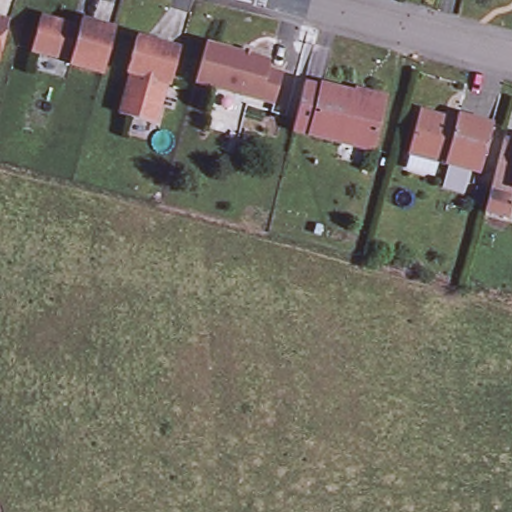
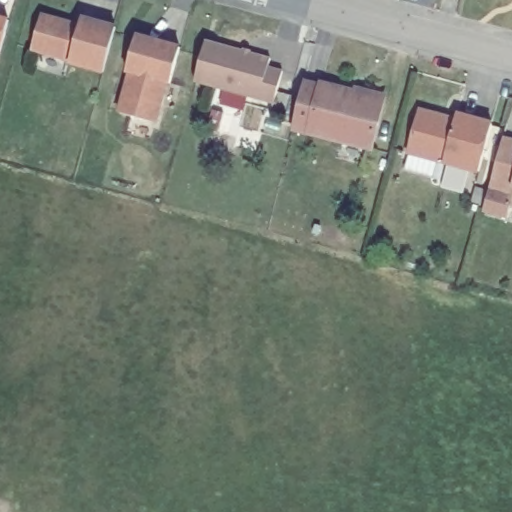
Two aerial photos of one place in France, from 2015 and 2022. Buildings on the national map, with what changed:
unchanged [(103,71),(70,62),(70,59),(31,49),(41,14),(72,22),(71,25),(79,27),(82,16),(115,25),(103,71)]
unchanged [(0,54),(0,18),(9,20),(0,54)]
unchanged [(170,81),(166,80),(155,121),(120,111),(130,71),(126,69),(135,33),(180,44),(170,81)]
unchanged [(273,96),(195,76),(205,34),(269,51),(266,60),(281,64),(273,96)]
unchanged [(297,125),(310,80),(326,85),(327,82),(360,91),(387,98),(386,104),(374,147),(297,125)]
unchanged [(482,173),(412,154),(423,112),(459,121),(460,117),(495,126),(482,173)]
unchanged [(506,135),(512,136),(512,213),(488,207),(493,185),(506,135)]

